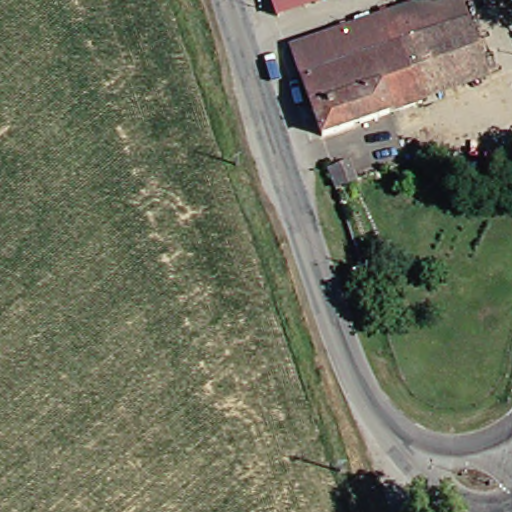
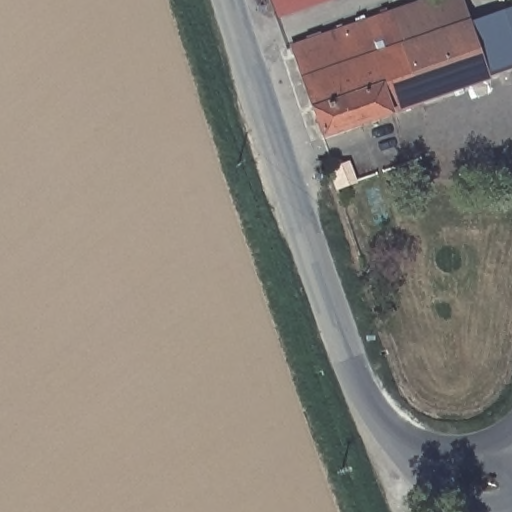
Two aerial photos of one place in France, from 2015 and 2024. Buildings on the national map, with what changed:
unchanged [(272,0),(333,0),(277,18),(272,0)]
unchanged [(413,0),(416,0),(417,4),(426,0),(443,0),(451,26),(458,22),(476,79),(410,102),(315,137),(286,46),(383,11),(413,0)]
new [(488,76),(470,22),(512,7),(512,68),(488,76)]

